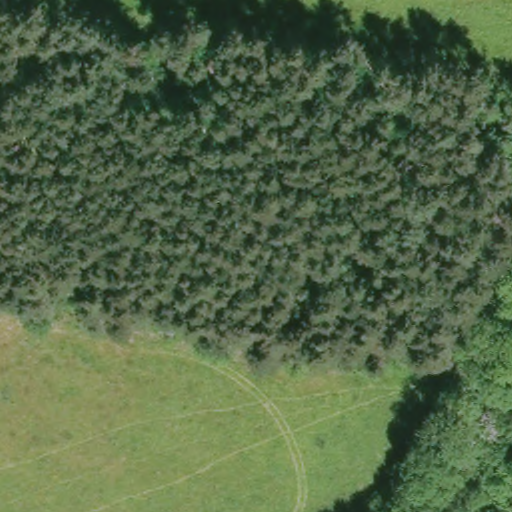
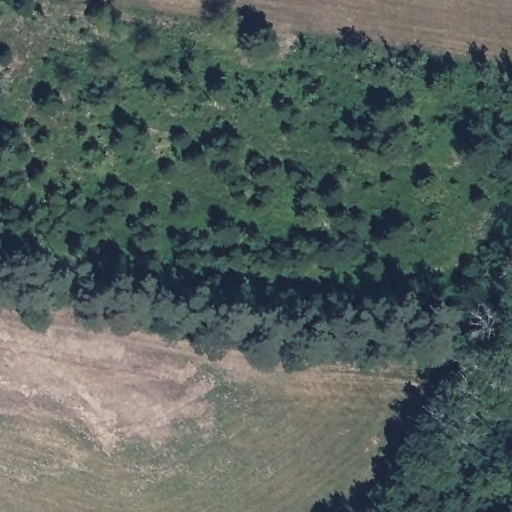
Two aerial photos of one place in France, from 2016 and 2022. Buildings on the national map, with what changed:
[]

